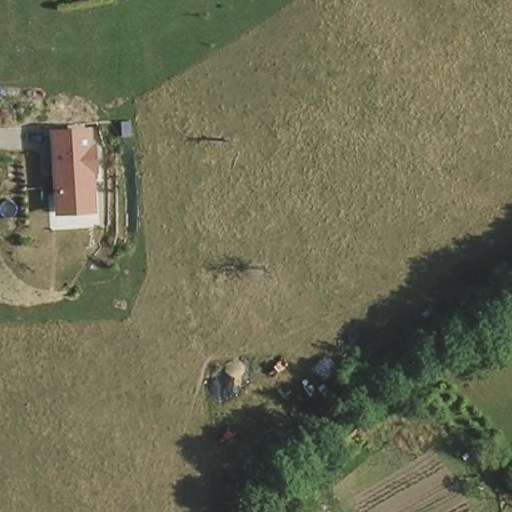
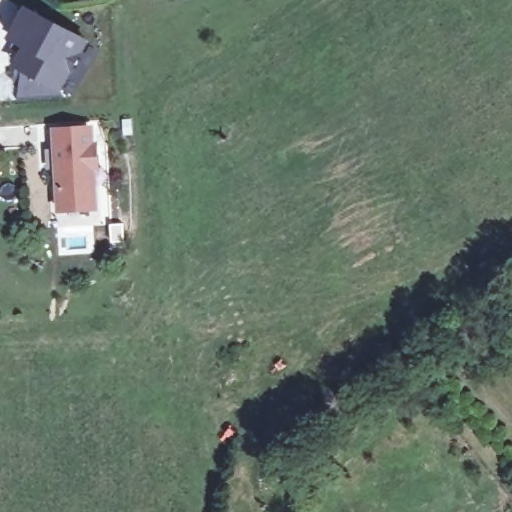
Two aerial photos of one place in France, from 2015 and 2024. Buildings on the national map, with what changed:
new [(21,45),(7,37),(24,5),(88,38),(70,73),(61,92),(11,66),(21,45)]
unchanged [(97,212),(56,215),(52,130),(94,127),(97,212)]

